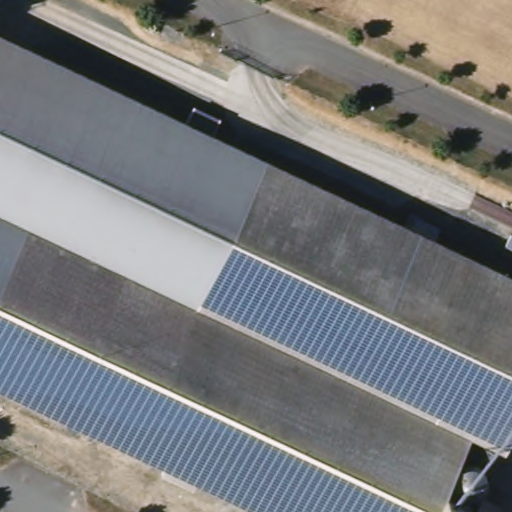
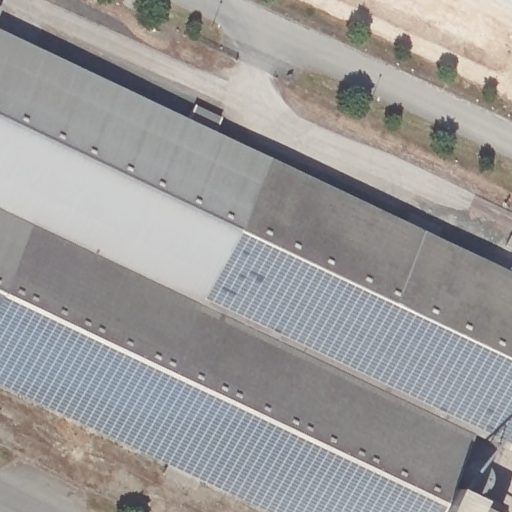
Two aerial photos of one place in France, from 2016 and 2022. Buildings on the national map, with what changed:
unchanged [(201,297),(199,301),(30,217),(0,282),(0,32),(267,157),(201,297)]
unchanged [(507,448),(472,431),(435,512),(259,512),(0,390),(0,282),(30,217),(199,301),(267,157),(512,272),(512,436),(507,448)]
unchanged [(464,458),(489,470),(473,502),(489,512),(439,512),(448,494),(464,458)]

